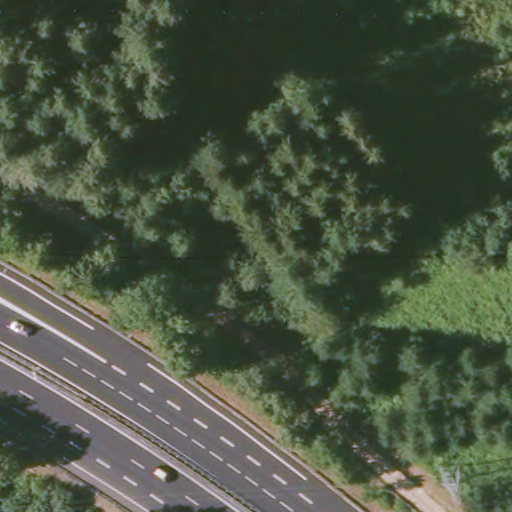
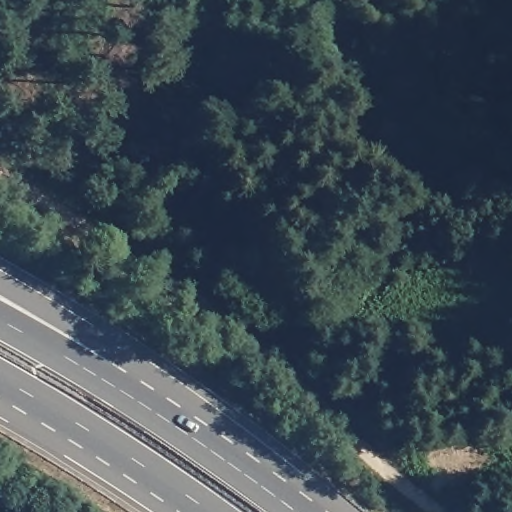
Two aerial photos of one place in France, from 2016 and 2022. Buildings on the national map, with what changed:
unchanged [(436,463),(456,462),(456,483),(437,481),(436,463)]

